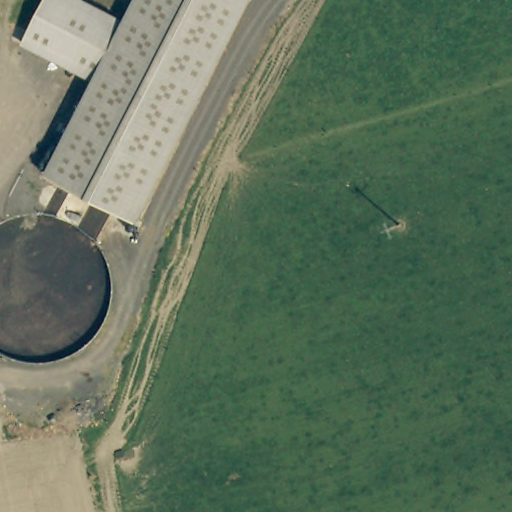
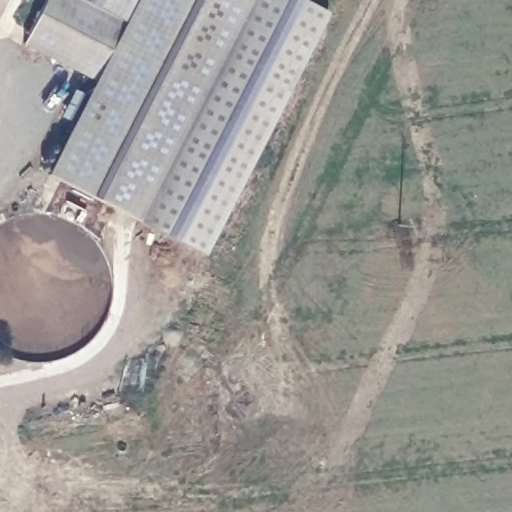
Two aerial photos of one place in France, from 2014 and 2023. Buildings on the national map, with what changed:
unchanged [(138,222),(46,175),(94,81),(22,43),(45,0),(252,0),(138,222)]
new [(327,12),(202,256),(138,222),(252,0),(304,0),(327,12)]

